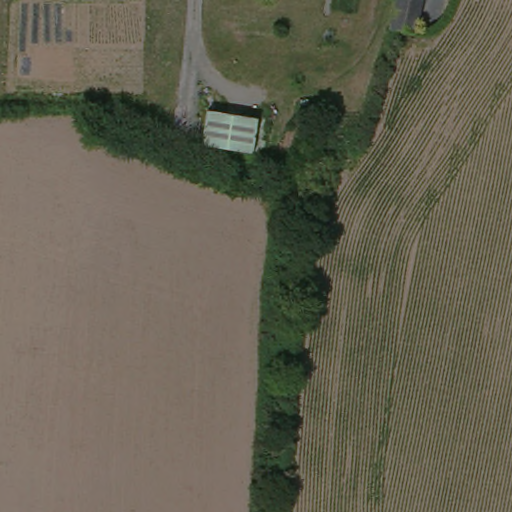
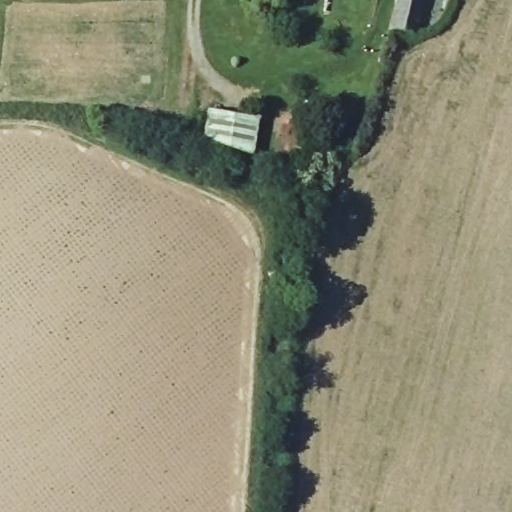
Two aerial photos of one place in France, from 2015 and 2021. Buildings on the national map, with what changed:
unchanged [(410,41),(405,40),(379,36),(386,0),(415,0),(410,41)]
unchanged [(260,120),(256,153),(200,146),(205,112),(260,120)]

